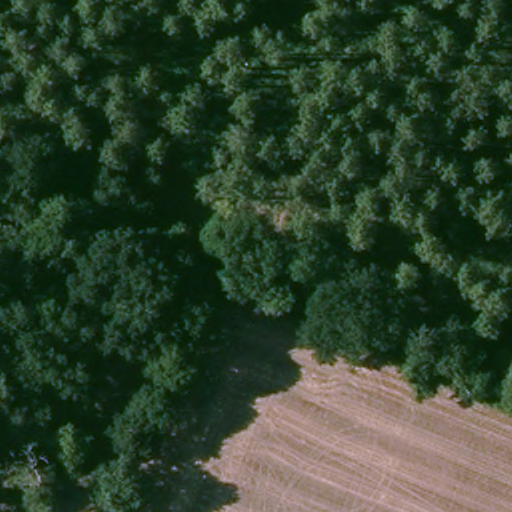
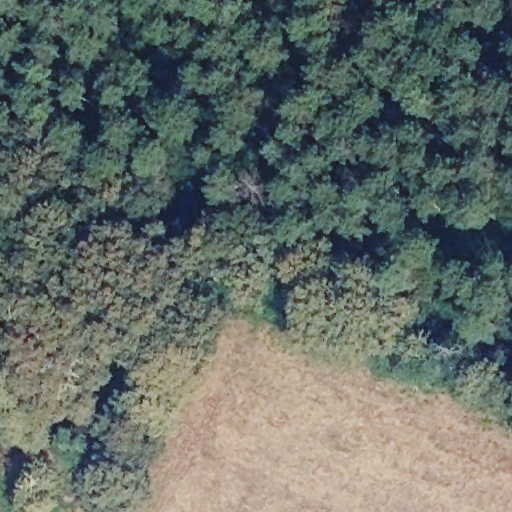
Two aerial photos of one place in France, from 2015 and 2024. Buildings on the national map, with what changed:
[]

